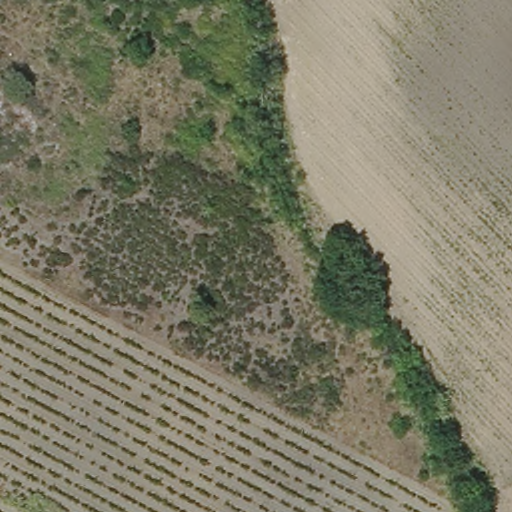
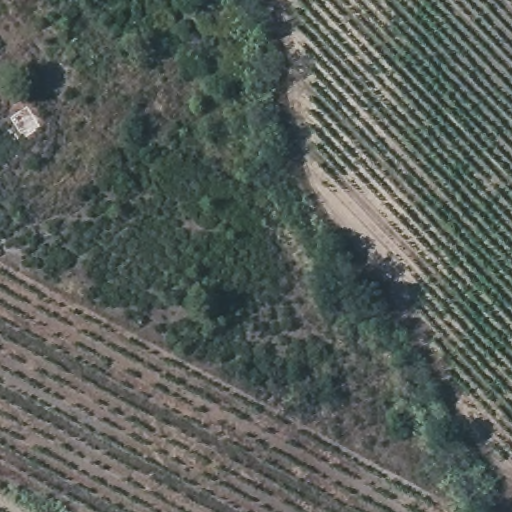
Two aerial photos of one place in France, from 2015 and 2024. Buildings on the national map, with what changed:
unchanged [(42,130),(31,135),(13,101),(23,94),(42,130)]

